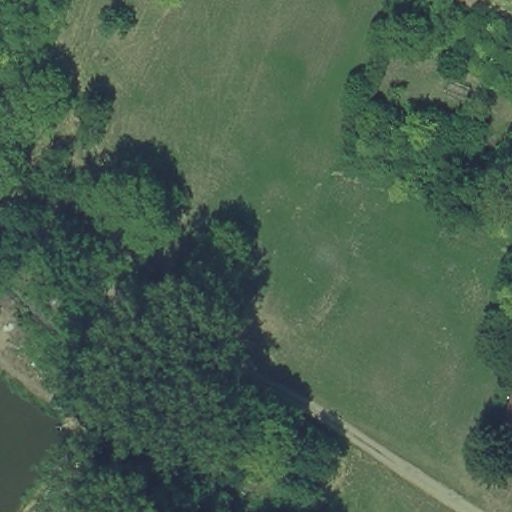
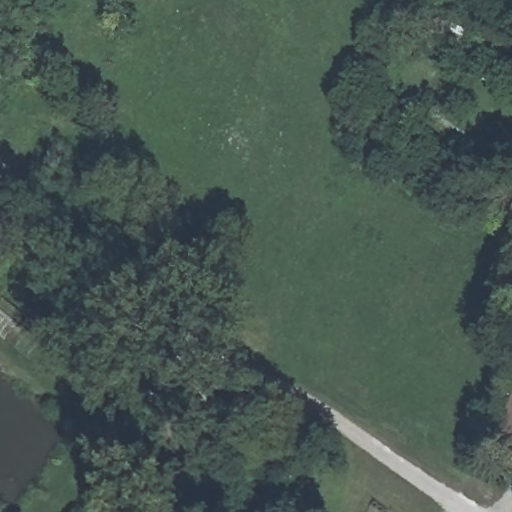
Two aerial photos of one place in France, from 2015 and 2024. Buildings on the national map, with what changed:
unchanged [(503,434),(512,412),(512,437),(503,434)]

